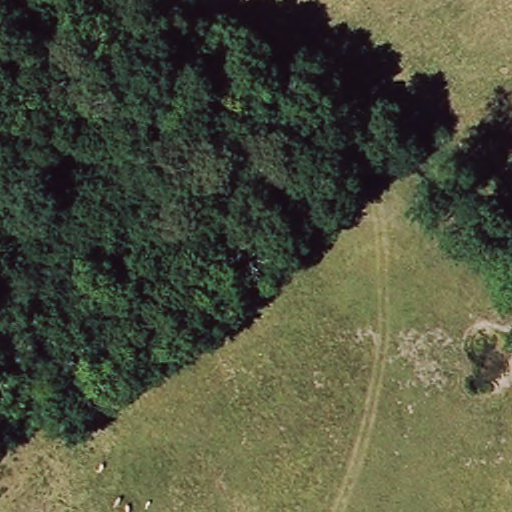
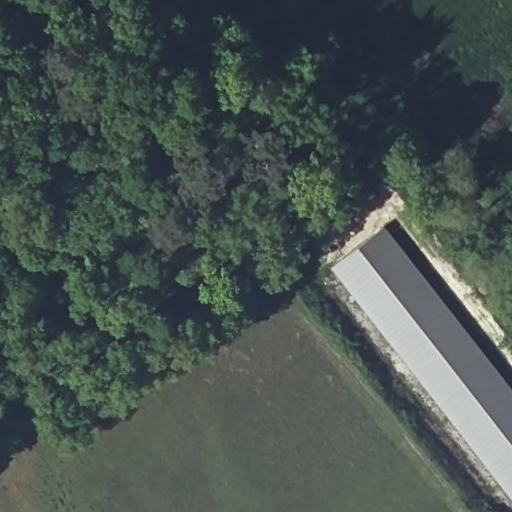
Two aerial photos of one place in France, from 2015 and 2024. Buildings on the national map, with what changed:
new [(512,386),(512,498),(331,269),(387,226),(512,386)]

